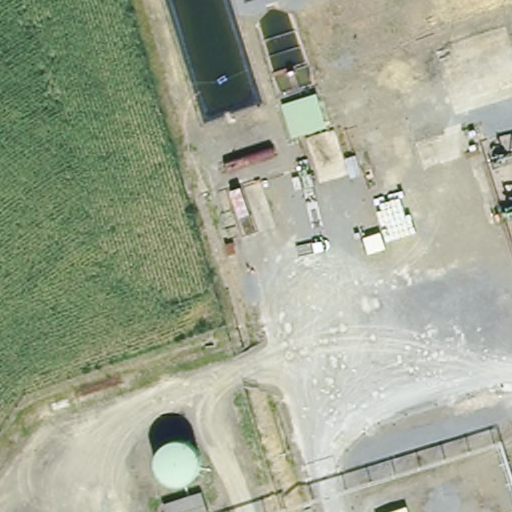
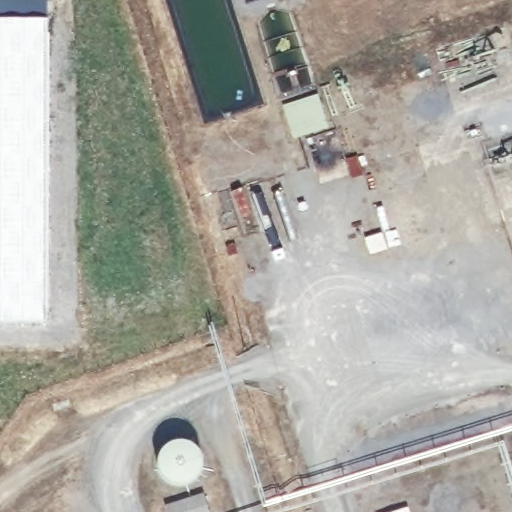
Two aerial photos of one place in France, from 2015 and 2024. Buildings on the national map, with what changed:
new [(44,322),(0,322),(0,0),(46,0),(46,20),(44,322)]
unchanged [(162,500),(197,490),(206,512),(165,512),(162,500)]
unchanged [(368,507),(407,498),(412,512),(370,512),(368,507)]

